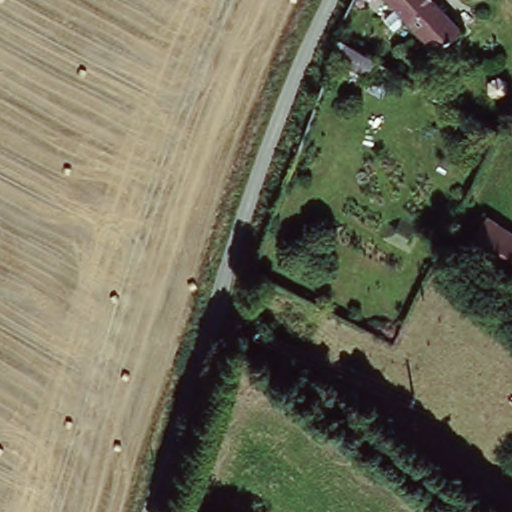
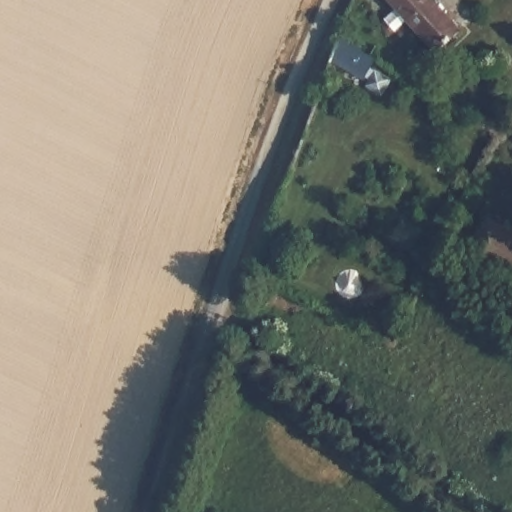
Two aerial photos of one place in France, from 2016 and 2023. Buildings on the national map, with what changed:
unchanged [(387,19),(398,8),(390,0),(432,0),(461,32),(437,53),(408,20),(397,30),(387,19)]
unchanged [(337,42),(371,60),(362,78),(330,60),(337,42)]
unchanged [(463,252),(486,221),(510,238),(487,268),(463,252)]
unchanged [(510,238),(512,240),(512,286),(487,268),(510,238)]

